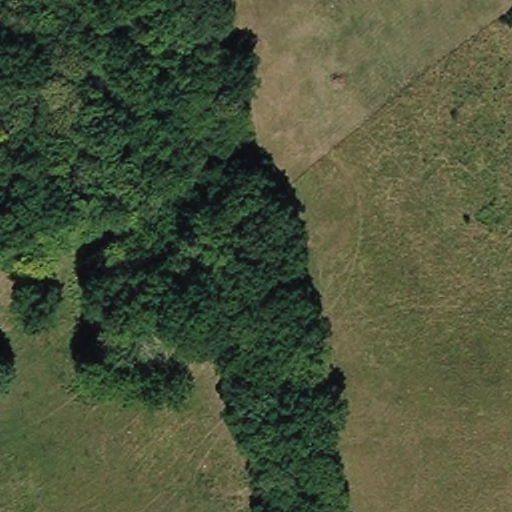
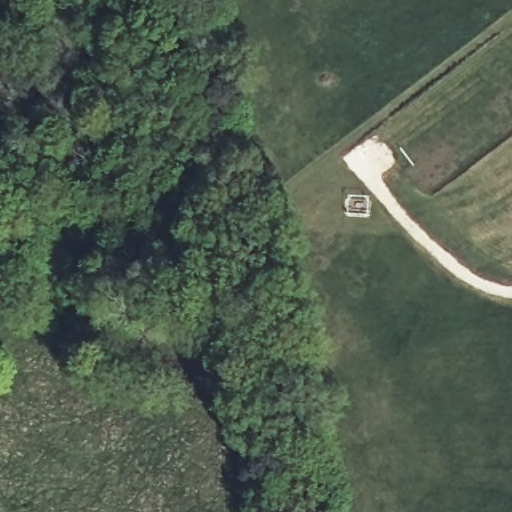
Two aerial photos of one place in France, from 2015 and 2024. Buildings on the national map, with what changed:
[]

